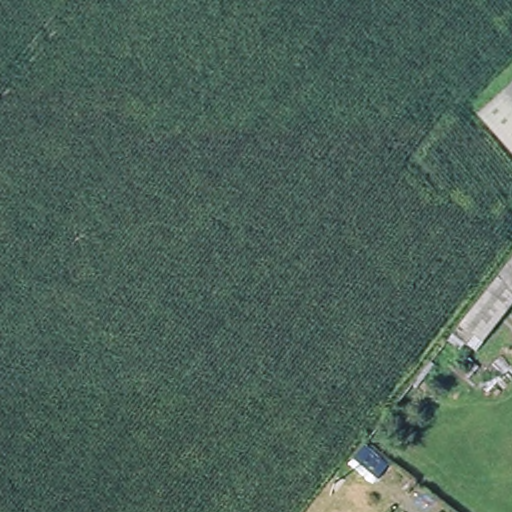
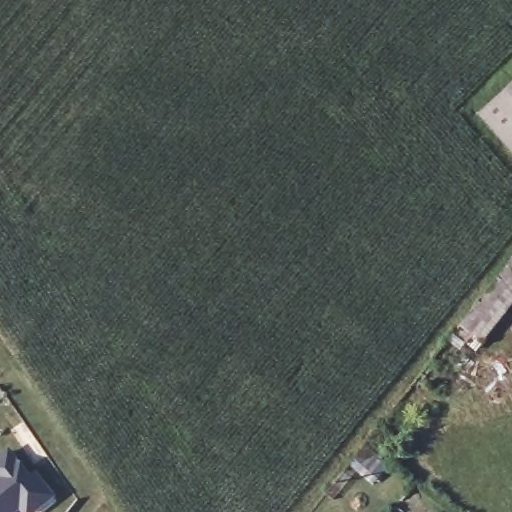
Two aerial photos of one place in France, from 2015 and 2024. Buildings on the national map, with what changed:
unchanged [(512,152),(478,112),(512,85),(512,152)]
unchanged [(453,332),(512,255),(512,310),(478,355),(453,332)]
new [(9,445),(25,464),(22,466),(28,473),(36,467),(52,488),(28,507),(21,498),(4,512),(0,512),(0,452),(9,445)]

